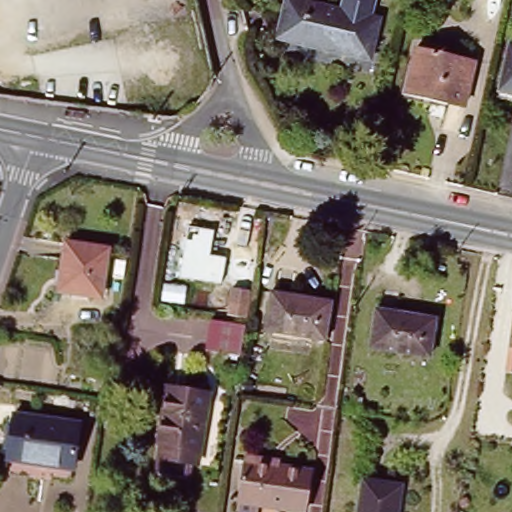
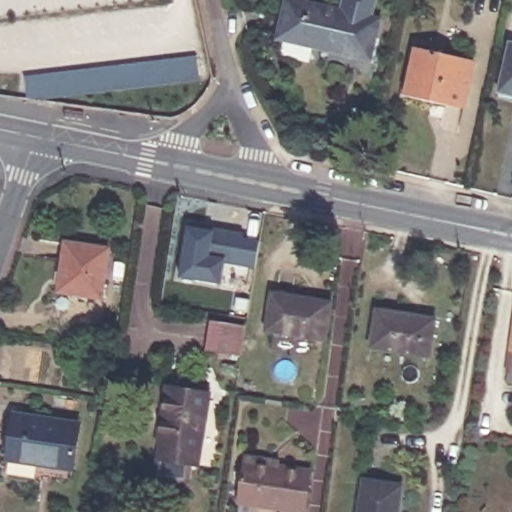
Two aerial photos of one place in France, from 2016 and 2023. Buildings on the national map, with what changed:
unchanged [(274,37),(283,0),(287,0),(355,17),(375,22),(365,60),(345,55),(274,37)]
unchanged [(512,49),(512,100),(499,97),(510,49),(512,49)]
unchanged [(410,55),(470,69),(460,112),(400,98),(410,55)]
new [(23,75),(196,56),(198,79),(47,98),(27,97),(23,75)]
unchanged [(180,278),(188,230),(228,236),(220,283),(180,278)]
unchanged [(105,251),(97,297),(57,291),(64,244),(105,251)]
unchanged [(321,344),(262,333),(267,296),(327,307),(321,344)]
unchanged [(213,312),(247,317),(242,347),(209,342),(213,312)]
unchanged [(373,315),(432,326),(426,362),(367,352),(373,315)]
unchanged [(505,377),(512,329),(512,379),(505,377)]
unchanged [(197,465),(190,464),(187,483),(155,478),(160,444),(157,443),(167,387),(210,394),(197,465)]
unchanged [(3,425),(69,426),(69,471),(2,469),(3,425)]
unchanged [(252,507),(237,505),(243,459),(260,462),(268,463),(267,468),(295,472),(309,474),(303,512),(282,512),(252,507)]
unchanged [(362,482),(402,487),(399,512),(358,512),(362,482)]

